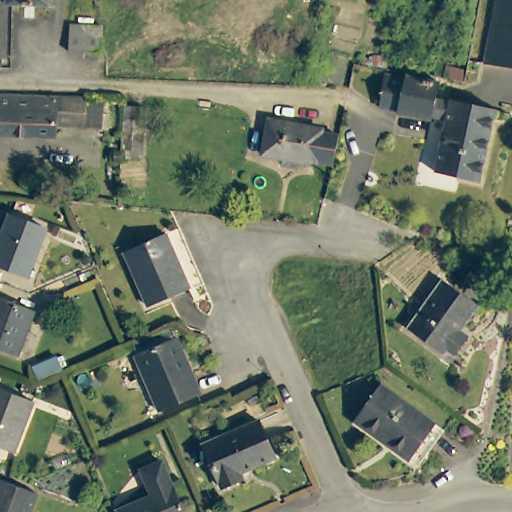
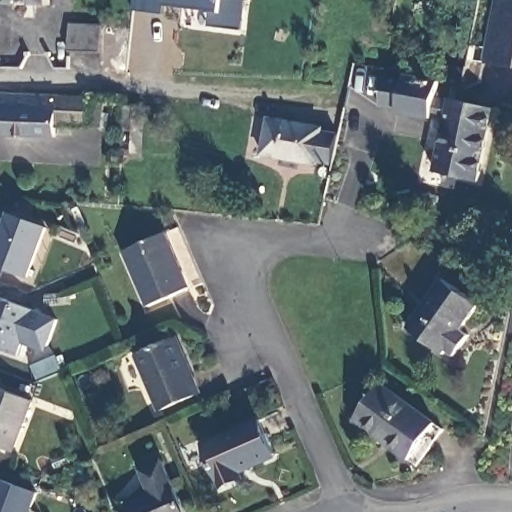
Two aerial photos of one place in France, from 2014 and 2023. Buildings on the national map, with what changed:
unchanged [(51,4),(9,2),(9,0),(52,0),(51,4)]
new [(243,28),(207,24),(207,10),(161,5),(162,0),(245,0),(243,28)]
unchanged [(501,0),(512,0),(512,64),(487,60),(501,0)]
unchanged [(98,29),(107,30),(105,56),(75,55),(75,50),(76,27),(98,29)]
unchanged [(1,59),(1,64),(1,67),(0,67),(0,59),(1,59)]
unchanged [(433,100),(429,117),(428,120),(425,119),(378,108),(385,76),(403,80),(404,77),(436,86),(433,100)]
unchanged [(56,122),(55,132),(0,131),(0,93),(8,93),(87,96),(86,123),(56,122)]
unchanged [(452,176),(435,172),(445,121),(429,117),(433,100),(446,102),(447,101),(468,106),(452,176)]
unchanged [(122,106),(143,106),(141,154),(120,153),(122,106)]
unchanged [(479,182),(452,176),(468,106),(492,111),(479,182)]
unchanged [(309,161),(255,147),(265,112),(318,125),(317,127),(334,131),(327,162),(310,157),(309,161)]
unchanged [(116,151),(110,150),(110,145),(117,145),(116,151)]
unchanged [(47,227),(29,275),(0,265),(0,244),(11,215),(47,227)]
unchanged [(188,285),(146,302),(124,249),(166,232),(188,285)]
unchanged [(478,301),(461,326),(469,332),(455,352),(444,346),(442,350),(405,326),(440,275),(478,301)]
unchanged [(34,311),(16,355),(0,349),(0,297),(34,311)]
unchanged [(200,391),(158,407),(135,354),(178,337),(200,391)]
unchanged [(440,423),(412,461),(350,413),(379,377),(440,423)]
unchanged [(35,401),(15,452),(0,445),(0,387),(35,401)]
unchanged [(241,470),(244,478),(222,488),(214,468),(202,443),(259,418),(270,444),(275,456),(241,470)]
unchanged [(157,462),(180,512),(115,512),(115,511),(149,496),(138,471),(157,462)]
unchanged [(30,512),(0,512),(0,480),(37,493),(30,512)]

